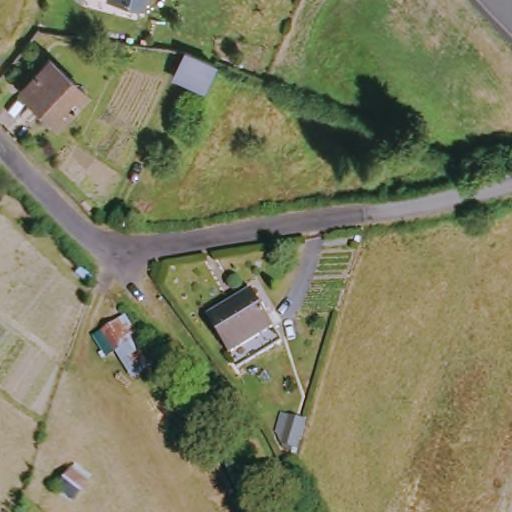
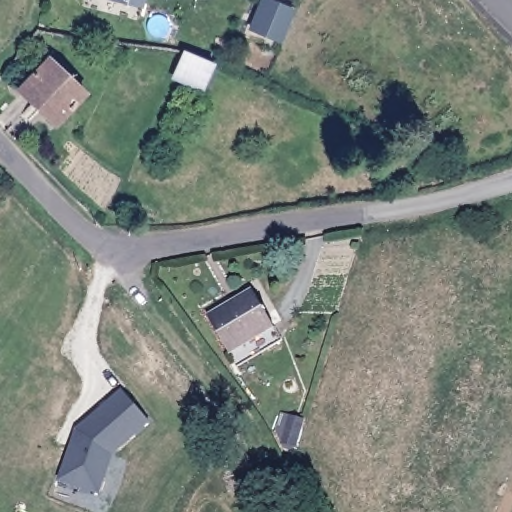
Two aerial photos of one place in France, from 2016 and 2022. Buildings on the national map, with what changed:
unchanged [(141,1),(137,0),(141,0),(141,1)]
unchanged [(176,82),(191,49),(223,65),(210,95),(176,82)]
unchanged [(94,90),(59,123),(48,112),(38,122),(28,111),(37,104),(25,91),(61,56),(94,90)]
unchanged [(262,285),(290,336),(245,361),(237,348),(217,310),(262,285)]
new [(100,493),(59,480),(77,429),(122,390),(150,421),(115,454),(100,493)]
unchanged [(287,440),(297,412),(312,418),(302,445),(287,440)]

